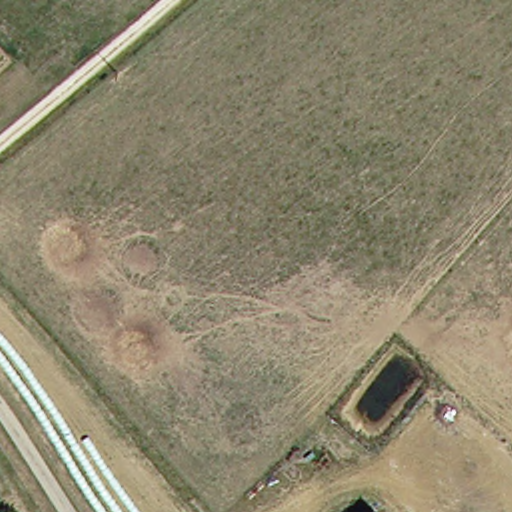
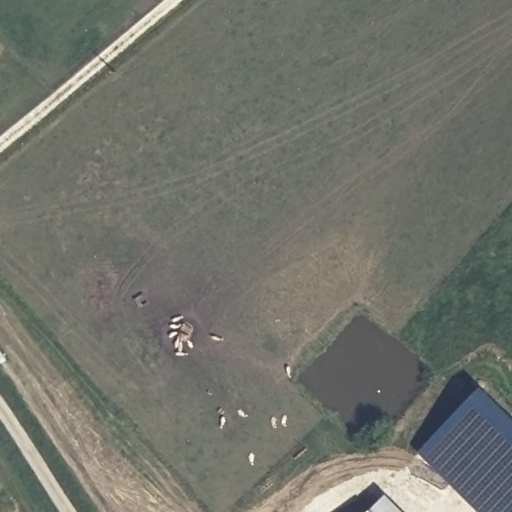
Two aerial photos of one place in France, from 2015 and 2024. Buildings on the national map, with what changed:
new [(483,387),(512,416),(512,512),(481,512),(420,451),(483,387)]
new [(406,512),(371,512),(388,494),(406,512)]
demolished [(373,512),(367,512),(370,509),(373,512)]
new [(384,512),(383,512),(384,511),(384,512)]

